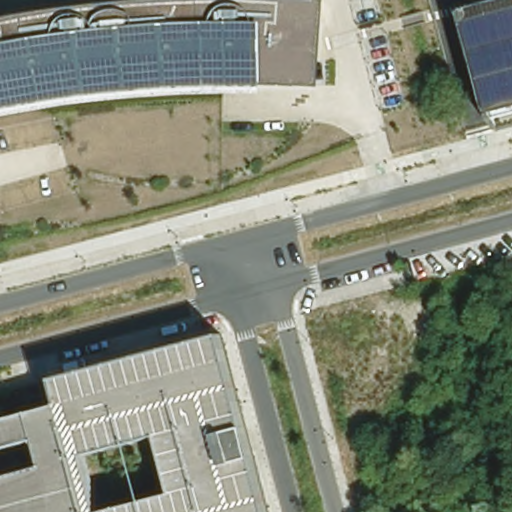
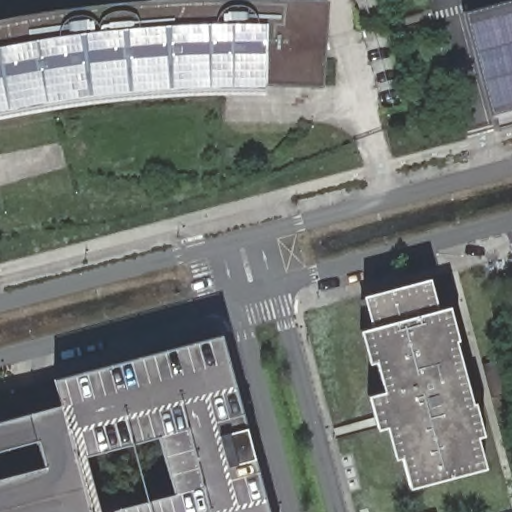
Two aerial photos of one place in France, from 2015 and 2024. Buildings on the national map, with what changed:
unchanged [(57,10),(110,4),(158,0),(328,0),(323,88),(266,86),(265,95),(204,94),(156,96),(105,100),(55,107),(5,118),(0,119),(0,20),(5,19),(57,10)]
unchanged [(497,129),(492,114),(464,10),(501,0),(512,0),(512,125),(497,129)]
new [(438,309),(371,326),(363,294),(430,277),(438,309)]
new [(411,487),(403,457),(395,458),(387,427),(378,429),(368,394),(385,390),(377,362),(369,364),(360,329),(371,326),(438,309),(449,305),(458,339),(455,340),(471,403),(475,402),(484,434),(477,436),(486,467),(411,487)]
unchanged [(0,422),(33,413),(62,404),(55,378),(223,335),(269,512),(0,512),(0,422)]

